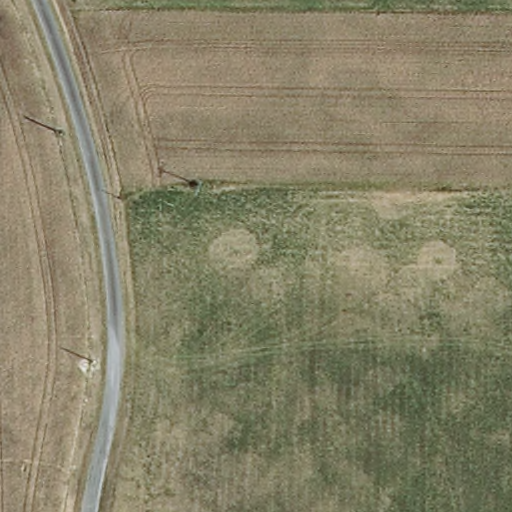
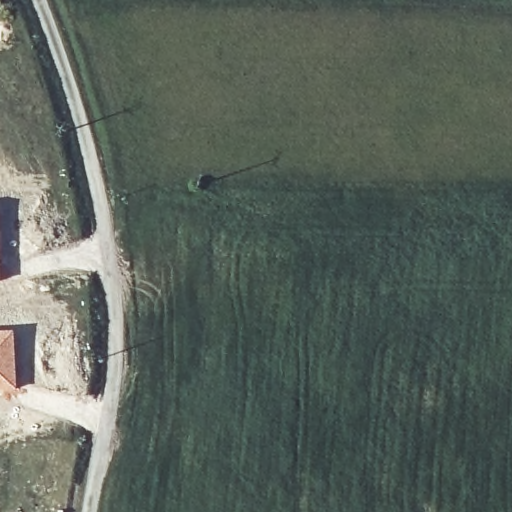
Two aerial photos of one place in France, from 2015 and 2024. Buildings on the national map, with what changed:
new [(13,330),(16,391),(0,392),(0,331),(13,330)]

